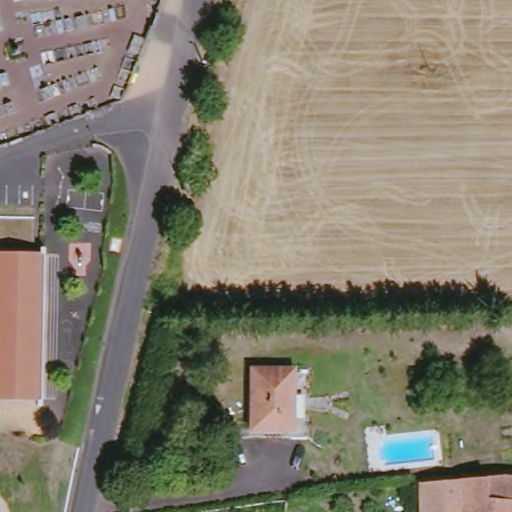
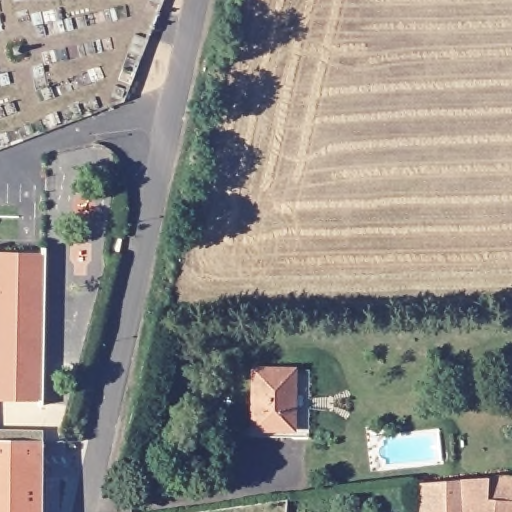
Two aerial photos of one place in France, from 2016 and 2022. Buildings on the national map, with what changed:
unchanged [(45,253),(48,253),(43,412),(39,411),(40,406),(0,405),(0,257),(45,258),(45,253)]
unchanged [(285,369),(298,369),(298,430),(242,430),(242,423),(243,368),(285,369)]
new [(0,512),(0,440),(43,441),(43,512),(0,512)]
unchanged [(512,477),(512,512),(417,512),(417,482),(512,477)]

